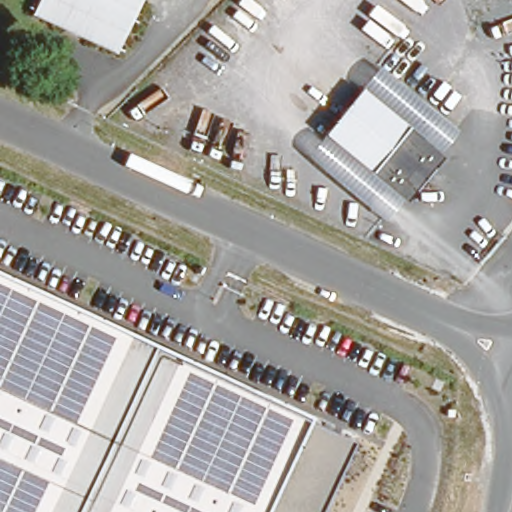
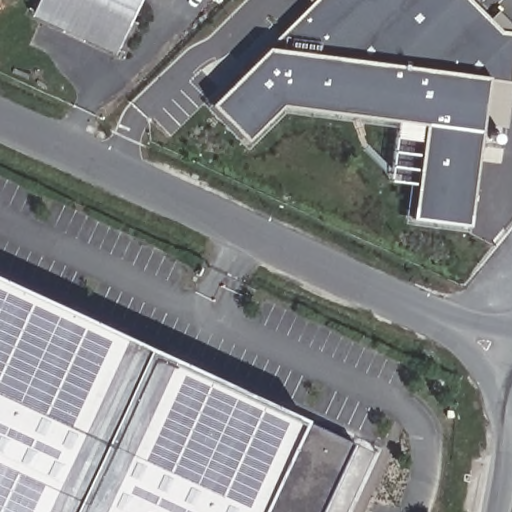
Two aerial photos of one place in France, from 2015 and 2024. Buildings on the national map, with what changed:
unchanged [(110,50),(27,10),(32,0),(139,0),(110,50)]
new [(319,0),(475,0),(503,30),(512,30),(512,95),(509,127),(485,124),(472,218),(420,211),(431,120),(292,100),(254,134),(218,100),(319,0)]
demolished [(302,155),(375,66),(456,133),(442,150),(448,157),(408,205),(400,199),(383,222),(302,155)]
new [(197,91),(155,136),(136,115),(179,71),(197,91)]
new [(396,115),(431,120),(420,211),(472,218),(471,223),(466,224),(466,227),(403,219),(406,182),(388,180),(396,115)]
unchanged [(324,512),(0,512),(0,276),(305,417),(355,442),(324,512)]

